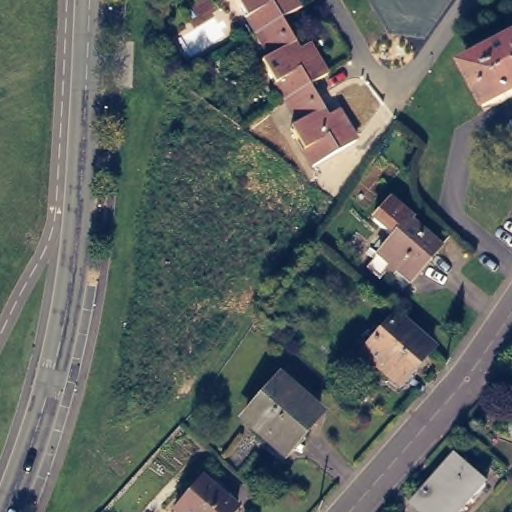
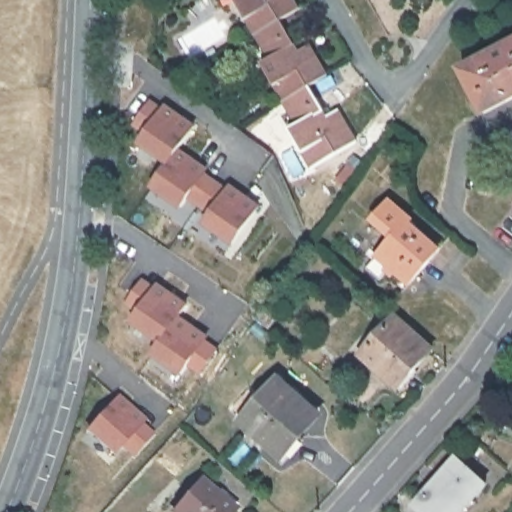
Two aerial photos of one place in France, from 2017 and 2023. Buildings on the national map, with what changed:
unchanged [(281,20),(255,35),(235,0),(293,0),(299,9),(281,20)]
unchanged [(281,20),(295,45),(291,47),(295,54),(309,45),(327,76),(309,86),(284,101),(262,63),(270,58),(255,35),(281,20)]
unchanged [(486,108),(464,65),(512,39),(512,94),(486,108)]
unchanged [(309,86),(324,111),(320,114),(324,120),(337,111),(355,143),(312,168),(290,129),(298,124),(284,101),(309,86)]
new [(151,102),(179,121),(182,117),(195,127),(179,150),(192,159),(190,164),(244,202),(247,198),(260,207),(235,244),(205,224),(212,214),(189,197),(182,207),(153,187),(170,164),(140,144),(147,134),(135,125),(151,102)]
unchanged [(409,279),(377,251),(393,234),(372,216),(390,196),(412,215),(409,218),(439,244),(409,279)]
new [(144,281),(171,300),(175,296),(187,305),(179,318),(192,327),(190,331),(217,350),(201,373),(189,364),(182,374),(153,354),(162,342),(133,322),(140,312),(127,304),(144,281)]
unchanged [(402,388),(367,355),(400,318),(437,349),(402,388)]
unchanged [(288,445),(249,412),(284,372),(322,406),(288,445)]
new [(119,397),(131,408),(127,412),(152,434),(134,455),(122,445),(115,454),(89,430),(119,397)]
unchanged [(462,512),(421,512),(415,506),(456,459),(486,485),(462,512)]
unchanged [(235,512),(175,512),(179,508),(207,475),(241,505),(235,512)]

